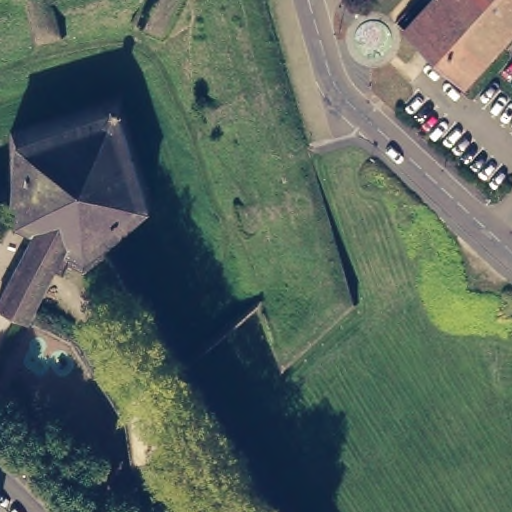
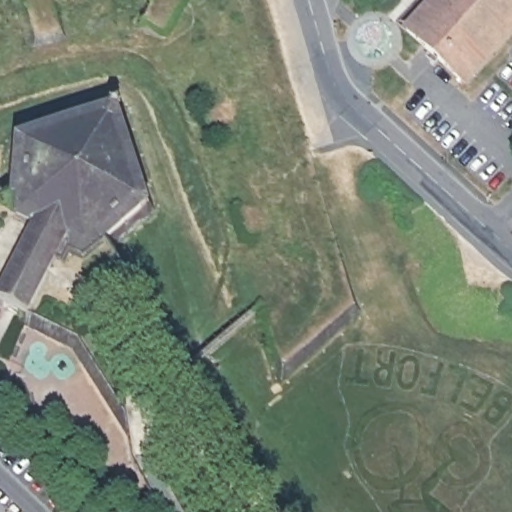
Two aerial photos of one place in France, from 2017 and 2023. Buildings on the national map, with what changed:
unchanged [(36,41),(27,0),(56,0),(64,36),(36,41)]
unchanged [(142,24),(156,0),(181,0),(165,30),(142,24)]
unchanged [(410,30),(438,0),(512,0),(512,38),(470,84),(410,30)]
unchanged [(221,130),(203,131),(195,103),(215,97),(221,130)]
unchanged [(5,191),(7,170),(10,136),(120,100),(156,210),(118,244),(107,252),(84,270),(69,263),(64,273),(55,268),(30,317),(25,326),(17,323),(20,316),(3,308),(0,315),(0,314),(0,191),(5,191)]

